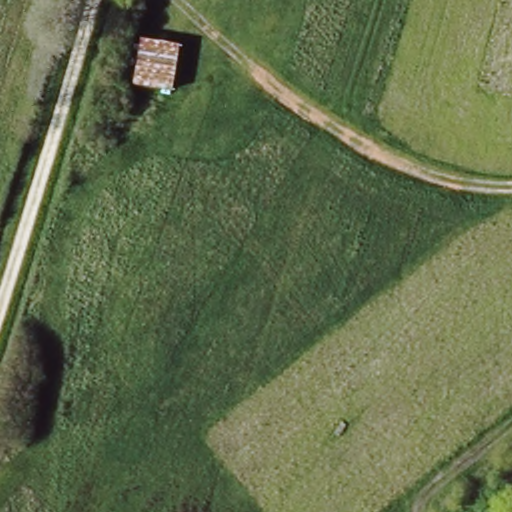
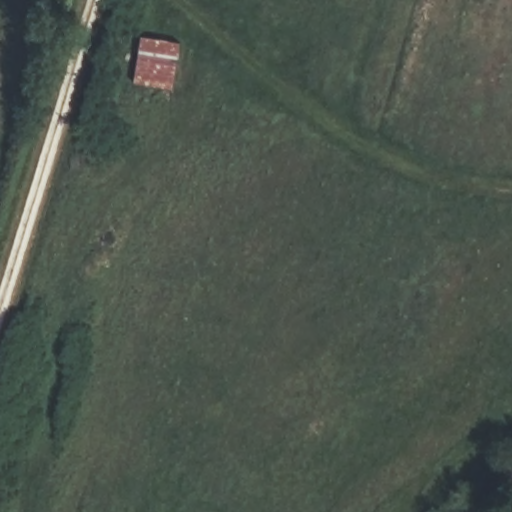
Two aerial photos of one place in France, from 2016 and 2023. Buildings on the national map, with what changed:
unchanged [(144,35),(181,40),(173,88),(136,81),(144,35)]

